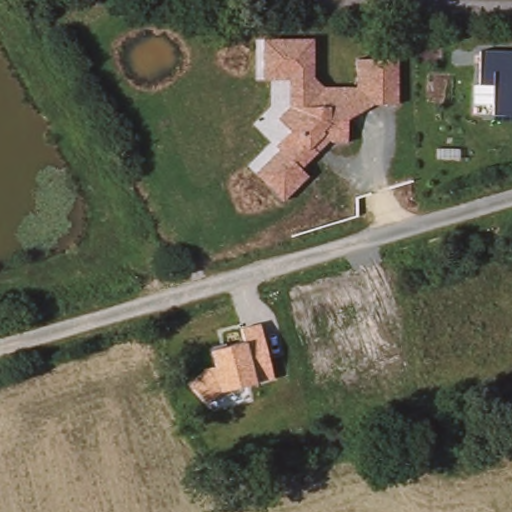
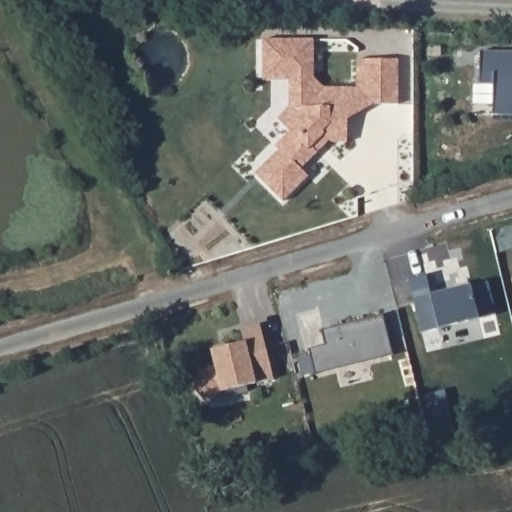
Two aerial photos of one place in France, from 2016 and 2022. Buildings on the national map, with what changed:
unchanged [(278,152),(274,146),(288,131),(277,121),(276,80),(262,79),(262,38),(313,40),(312,79),(323,87),(355,89),(356,57),(397,58),(397,105),(371,105),(346,119),(346,141),(327,142),(301,170),(307,176),(283,201),(255,174),(278,152)]
unchanged [(478,52),(512,52),(512,121),(477,120),(478,52)]
new [(427,275),(432,295),(488,281),(496,315),(422,333),(409,279),(427,275)]
new [(325,345),(322,330),(384,315),(394,356),(392,356),(392,355),(317,373),(317,375),(315,375),(309,350),(325,345)]
unchanged [(257,383),(218,393),(206,402),(192,381),(214,365),(210,351),(244,342),(241,329),(261,324),(275,378),(257,383)]

